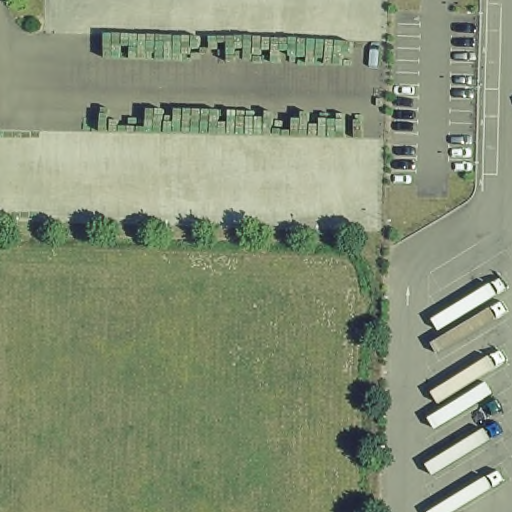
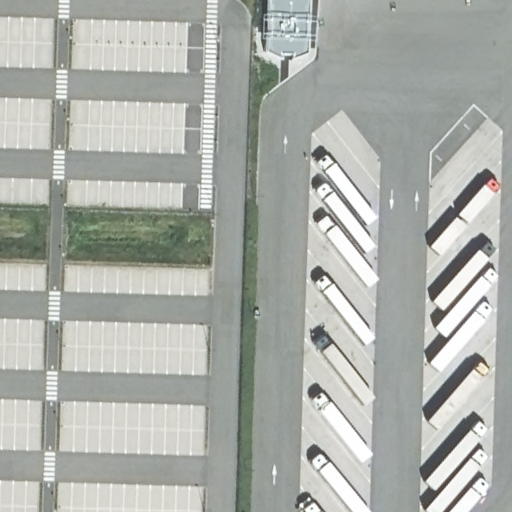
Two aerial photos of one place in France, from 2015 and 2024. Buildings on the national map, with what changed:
new [(310,0),(308,54),(283,59),(261,52),(260,26),(262,0),(310,0)]

